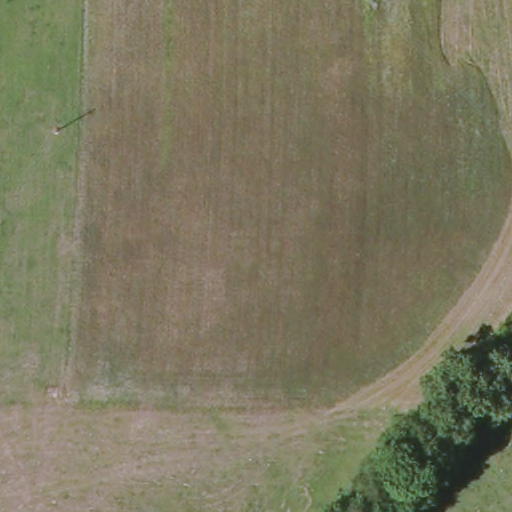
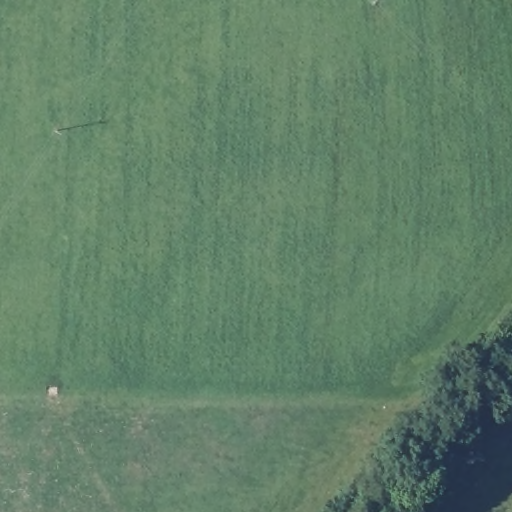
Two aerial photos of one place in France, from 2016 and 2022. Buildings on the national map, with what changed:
[]

